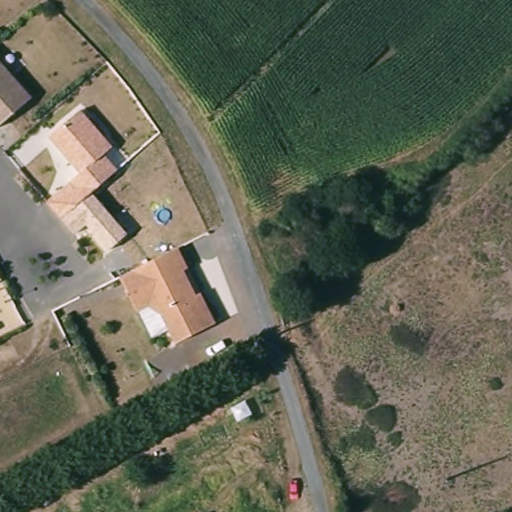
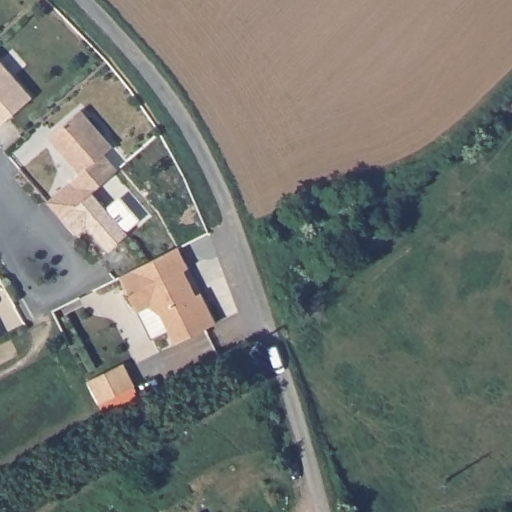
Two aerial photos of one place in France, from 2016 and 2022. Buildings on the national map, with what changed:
unchanged [(0,126),(0,61),(32,97),(0,126)]
unchanged [(49,199),(79,172),(50,137),(82,109),(114,146),(105,155),(116,169),(63,217),(49,199)]
unchanged [(119,278),(177,249),(186,268),(182,269),(194,296),(197,294),(212,325),(173,344),(160,315),(150,307),(136,313),(119,278)]
new [(124,365),(135,387),(99,405),(88,383),(124,365)]

